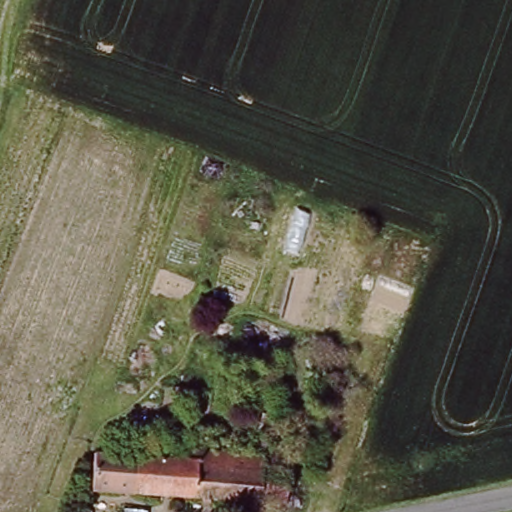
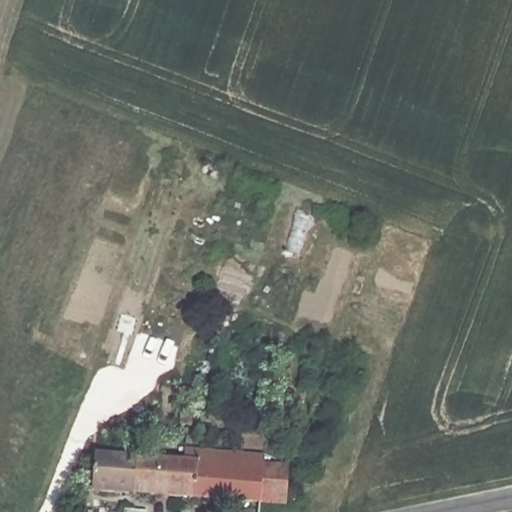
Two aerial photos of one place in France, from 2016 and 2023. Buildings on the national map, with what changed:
unchanged [(98,487),(102,454),(142,458),(143,452),(143,449),(150,450),(150,444),(167,445),(167,454),(195,456),(196,448),(276,455),(275,463),(295,465),(292,503),(269,501),(268,512),(242,512),(243,499),(98,487)]

